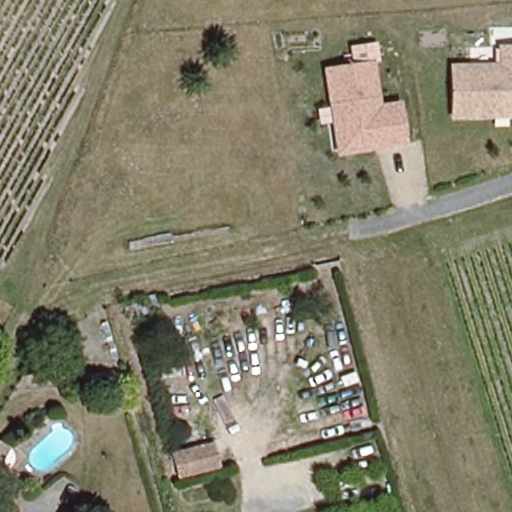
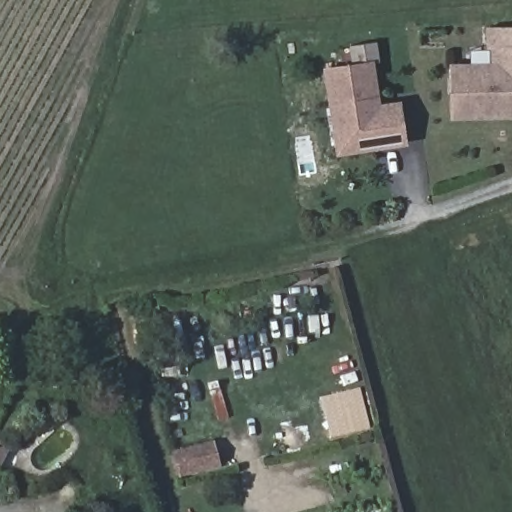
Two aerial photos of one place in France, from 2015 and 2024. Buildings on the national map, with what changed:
unchanged [(337,157),(333,123),(320,125),(317,108),(329,106),(324,68),(355,62),(350,45),(375,41),(380,64),(376,64),(381,102),(400,100),(406,144),(337,157)]
unchanged [(451,63),(499,61),(498,44),(512,44),(512,118),(451,120),(451,63)]
new [(329,438),(320,398),(360,388),(370,429),(329,438)]
unchanged [(171,453),(208,443),(214,464),(176,474),(171,453)]

